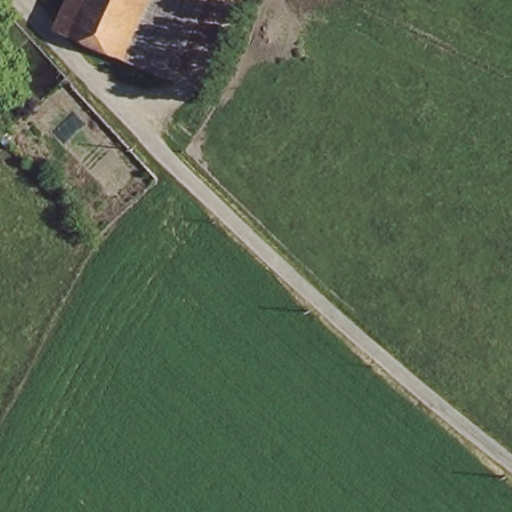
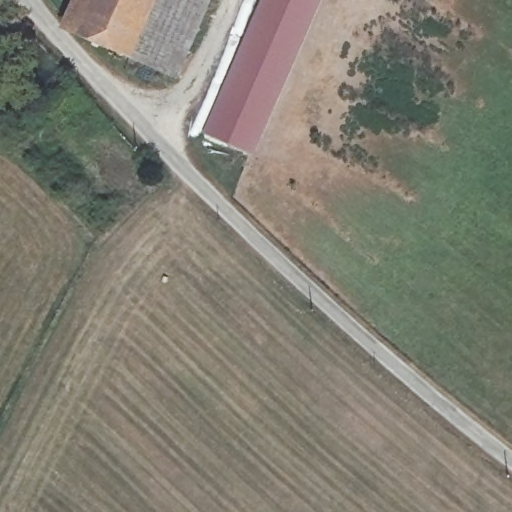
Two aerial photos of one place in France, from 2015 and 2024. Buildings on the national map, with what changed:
unchanged [(92,0),(152,0),(127,56),(76,35),(92,0)]
unchanged [(152,0),(210,0),(179,77),(127,56),(152,0)]
new [(253,154),(202,132),(261,0),(320,0),(253,154)]

